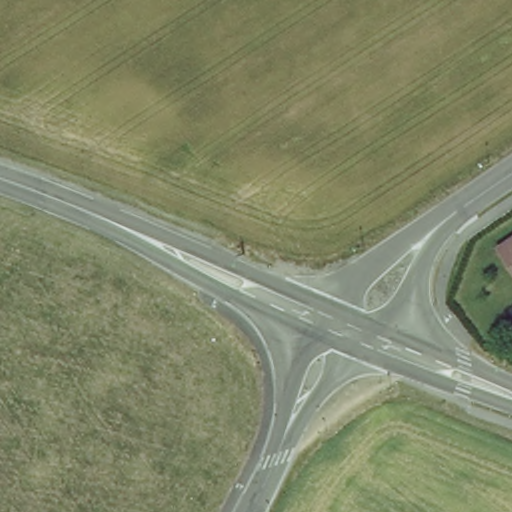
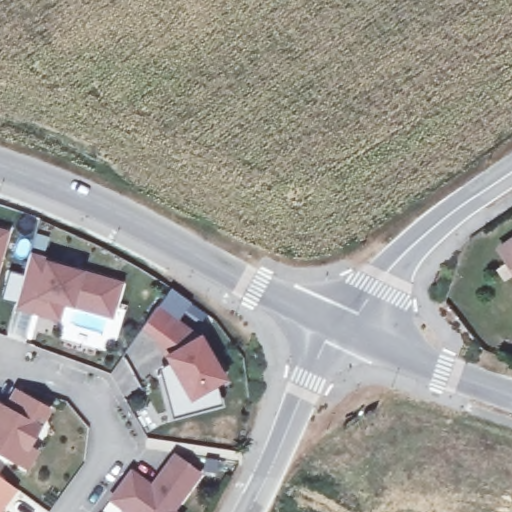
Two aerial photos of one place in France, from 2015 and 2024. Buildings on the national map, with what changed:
new [(10,230),(0,264),(0,228),(10,230)]
unchanged [(512,243),(512,267),(501,250),(512,243)]
new [(53,253),(51,256),(123,277),(113,312),(67,297),(61,315),(18,301),(33,248),(53,253)]
new [(188,291),(178,314),(198,329),(202,334),(205,332),(229,375),(220,380),(225,400),(215,401),(177,412),(167,370),(178,364),(159,331),(146,320),(175,281),(188,291)]
new [(13,407),(22,390),(50,405),(30,442),(37,447),(29,462),(0,446),(0,399),(13,407)]
new [(178,505),(186,512),(139,512),(114,494),(136,465),(156,481),(179,450),(204,469),(178,505)]
new [(0,506),(0,470),(17,483),(0,506)]

